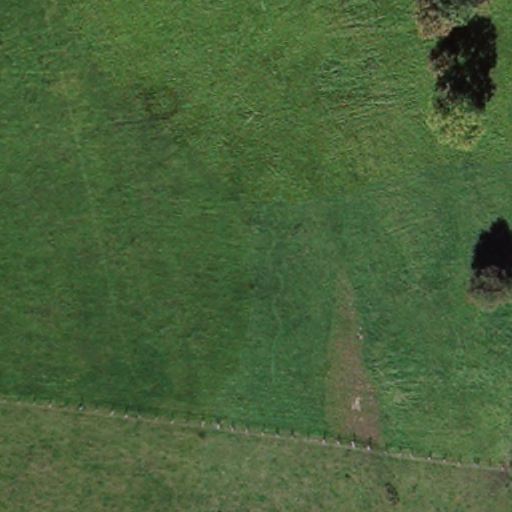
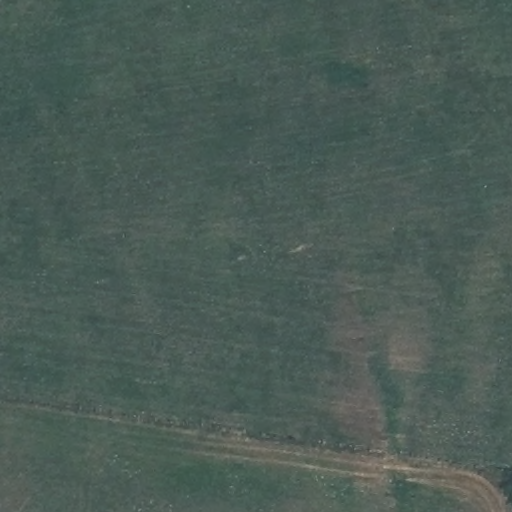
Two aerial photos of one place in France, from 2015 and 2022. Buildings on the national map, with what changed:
[]

